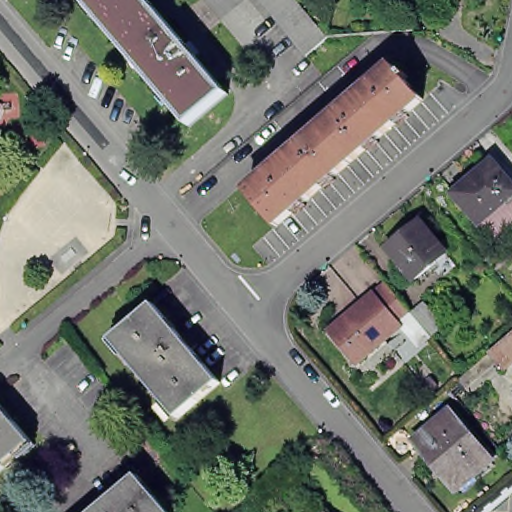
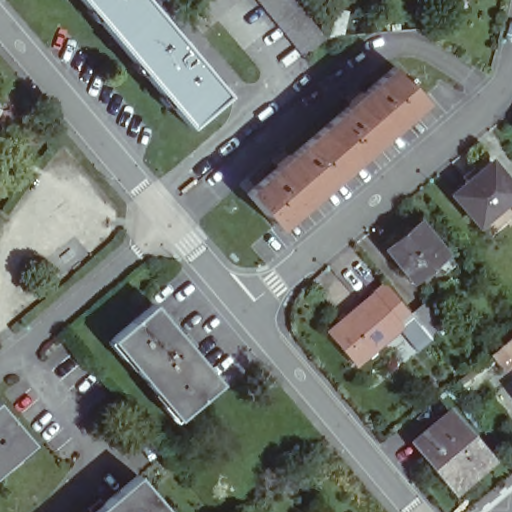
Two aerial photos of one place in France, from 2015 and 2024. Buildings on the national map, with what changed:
unchanged [(117,40),(83,0),(147,0),(154,8),(117,40)]
unchanged [(301,55),(256,0),(292,0),(323,38),(301,55)]
unchanged [(227,94),(189,126),(117,40),(154,8),(227,94)]
unchanged [(276,226),(248,194),(280,167),(279,164),(289,155),(291,158),(353,104),(351,102),(363,92),(365,94),(396,68),(423,100),(276,226)]
unchanged [(512,183),(512,200),(483,224),(457,193),(494,162),(512,183)]
unchanged [(443,258),(412,284),(386,253),(417,227),(443,258)]
unchanged [(426,308),(444,331),(432,341),(415,321),(404,331),(359,370),(331,337),(388,289),(413,318),(426,308)]
unchanged [(218,385),(175,419),(109,341),(151,305),(218,385)]
unchanged [(512,341),(512,371),(505,376),(491,359),(512,341)]
unchanged [(0,473),(0,402),(35,443),(0,473)]
unchanged [(494,464),(457,495),(416,446),(453,416),(494,464)]
unchanged [(169,512),(98,512),(139,478),(169,512)]

